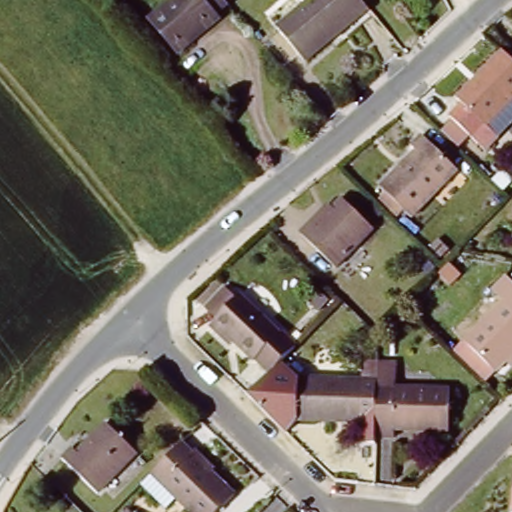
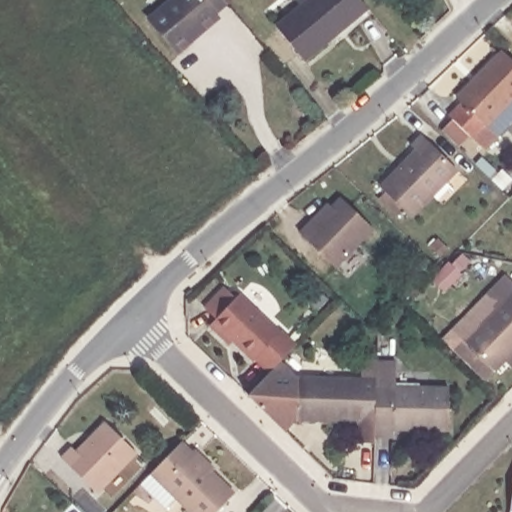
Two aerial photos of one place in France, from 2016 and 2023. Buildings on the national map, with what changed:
unchanged [(211,11),(215,16),(173,51),(147,20),(170,0),(222,0),(223,1),(211,11)]
unchanged [(301,59),(273,26),(304,0),(361,0),(365,5),(301,59)]
unchanged [(483,126),(489,130),(475,145),(447,117),(460,103),(455,98),(500,51),(512,62),(512,96),(483,126)]
unchanged [(377,186),(413,149),(408,145),(418,134),(454,168),(408,216),(377,186)]
unchanged [(310,222),(315,226),(340,199),(372,230),(335,269),(299,234),(310,222)]
unchanged [(452,351),(462,340),(500,300),(490,290),(503,275),(512,284),(512,364),(510,365),(505,359),(494,370),(483,381),(452,351)]
unchanged [(222,338),(208,325),(238,295),(279,335),(282,332),(297,346),(270,373),(255,358),(252,362),(232,342),(229,345),(222,338)]
unchanged [(295,419),(285,432),(247,394),(270,373),(281,362),(298,376),(295,419)]
unchanged [(372,428),(357,427),(357,423),(295,419),(298,376),(359,379),(359,386),(374,387),(372,428)]
unchanged [(372,428),(374,387),(375,378),(395,379),(395,387),(450,389),(447,429),(393,425),(393,435),(372,434),(372,428)]
unchanged [(60,461),(70,452),(76,458),(105,428),(135,457),(96,496),(60,461)]
unchanged [(153,499),(140,485),(181,443),(232,493),(215,512),(189,512),(172,496),(162,507),(153,499)]

